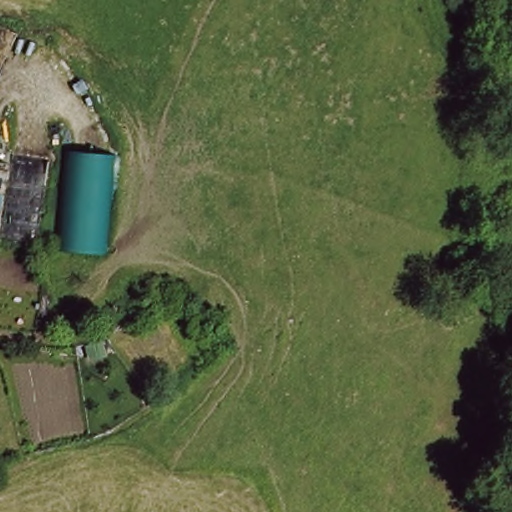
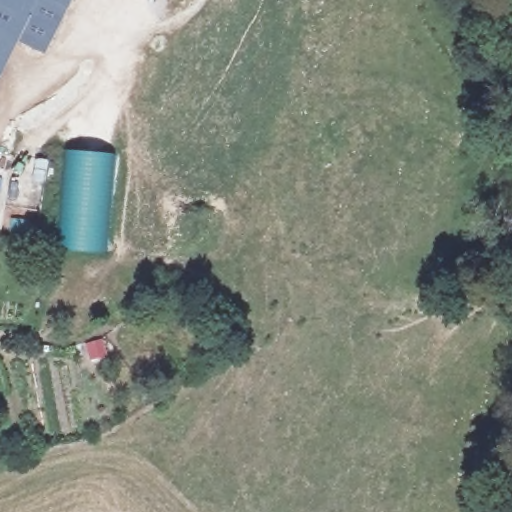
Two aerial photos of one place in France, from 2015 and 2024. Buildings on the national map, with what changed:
new [(0,79),(0,0),(74,0),(46,55),(19,41),(0,79)]
unchanged [(118,158),(110,256),(61,251),(66,155),(118,158)]

